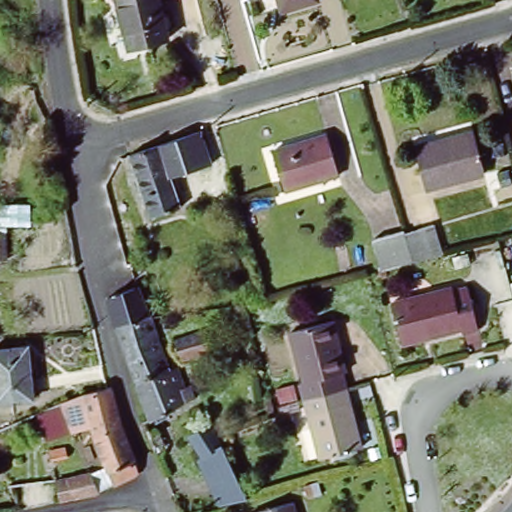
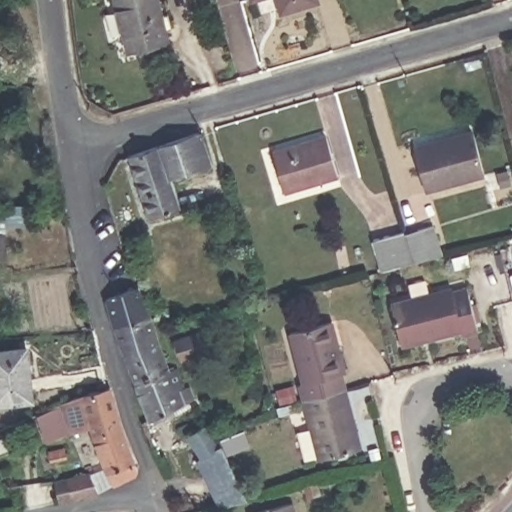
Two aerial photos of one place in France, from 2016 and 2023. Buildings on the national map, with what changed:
unchanged [(117,0),(161,0),(171,34),(130,44),(117,0)]
unchanged [(417,147),(476,131),(487,174),(428,189),(417,147)]
unchanged [(172,179),(180,208),(148,215),(130,154),(198,135),(209,169),(172,179)]
unchanged [(288,194),(276,155),(328,139),(341,177),(288,194)]
unchanged [(30,205),(30,227),(4,227),(6,260),(0,260),(0,204),(30,205)]
unchanged [(405,230),(435,223),(443,253),(413,260),(380,269),(373,238),(405,229),(405,230)]
unchanged [(410,339),(401,304),(452,290),(451,287),(467,283),(479,330),(465,334),(463,329),(436,337),(411,343),(410,339)]
unchanged [(106,299),(138,287),(150,324),(167,371),(135,383),(106,299)]
unchanged [(346,377),(349,391),(310,402),(305,387),(311,384),(296,333),(331,323),(336,321),(343,348),(350,375),(346,377)]
unchanged [(180,352),(206,343),(211,360),(185,369),(180,352)]
unchanged [(27,350),(32,399),(0,401),(0,352),(27,350)]
unchanged [(172,369),(186,404),(149,422),(147,419),(138,393),(135,383),(167,371),(172,369)]
unchanged [(140,472),(128,479),(115,486),(93,423),(72,430),(62,403),(85,394),(111,384),(141,470),(140,472)]
unchanged [(310,402),(349,391),(364,449),(321,462),(307,403),(310,402)]
unchanged [(242,497),(217,504),(195,457),(197,454),(187,435),(205,424),(215,439),(241,494),(242,497)]
unchanged [(69,458),(55,461),(53,452),(66,449),(69,458)]
unchanged [(83,499),(68,502),(64,482),(87,476),(92,496),(83,499)]
unchanged [(292,506),(294,512),(269,512),(292,506)]

